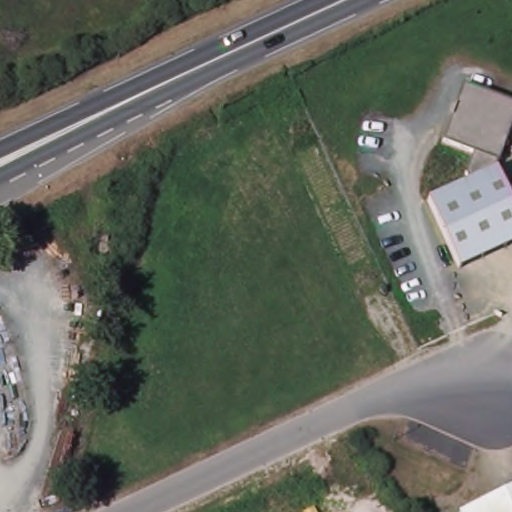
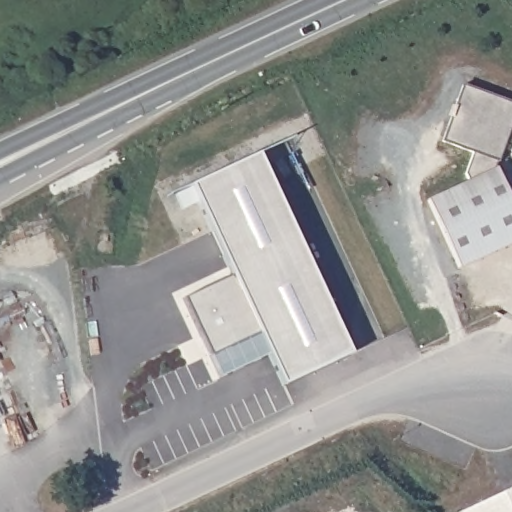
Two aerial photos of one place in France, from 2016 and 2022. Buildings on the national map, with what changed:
unchanged [(512,103),(512,120),(497,160),(494,168),(512,206),(512,243),(457,268),(428,198),(468,180),(466,173),(473,153),(442,140),(463,87),(512,103)]
new [(232,274),(191,184),(258,153),(351,351),(283,383),(268,352),(221,376),(184,298),(232,274)]
unchanged [(512,512),(463,512),(512,488),(512,512)]

